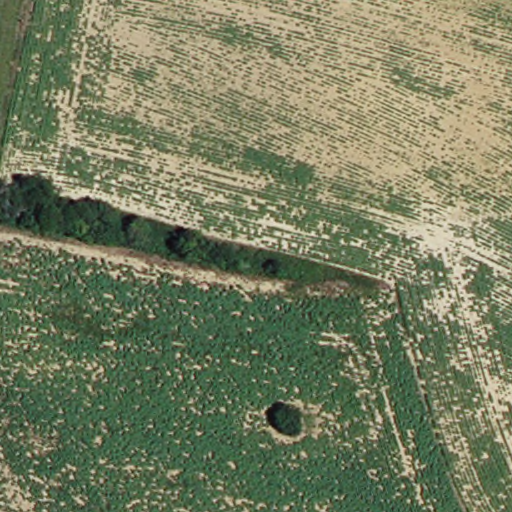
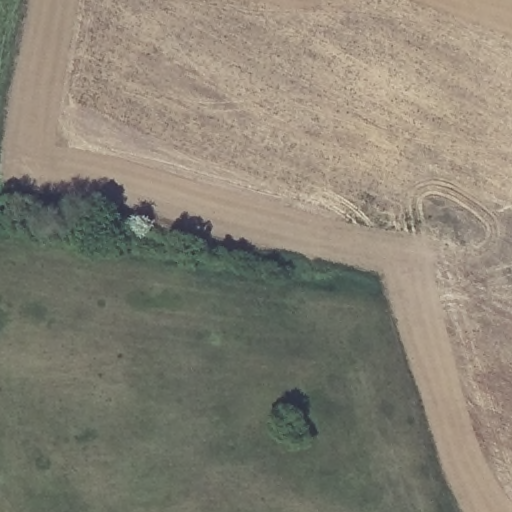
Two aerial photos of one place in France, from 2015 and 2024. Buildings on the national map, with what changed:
[]

